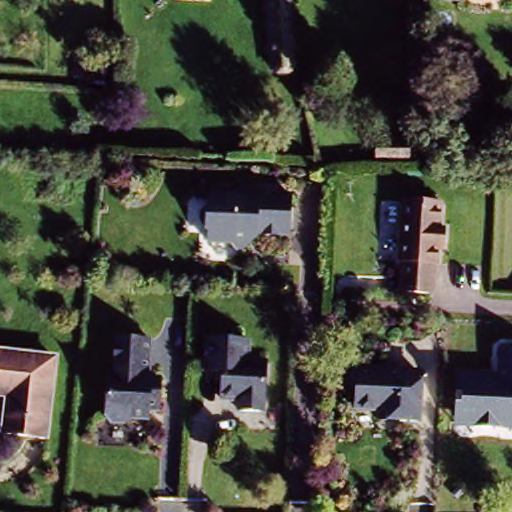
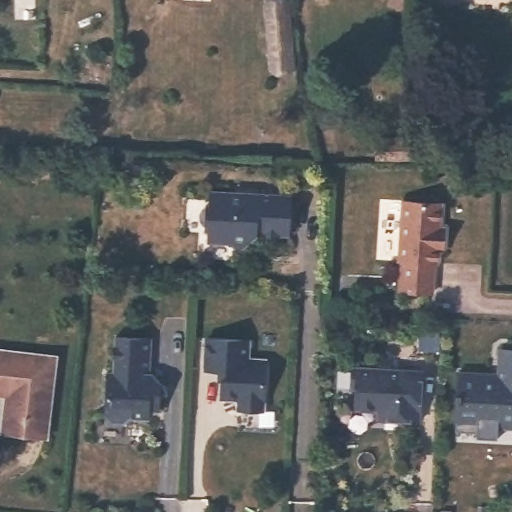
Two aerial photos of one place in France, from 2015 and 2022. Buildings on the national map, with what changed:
unchanged [(283,1),(287,64),(269,66),(265,2),(283,1)]
unchanged [(291,195),(289,235),(251,233),(251,242),(241,251),(233,242),(211,241),(211,228),(208,228),(209,202),(213,202),(213,192),(291,195)]
unchanged [(441,204),(439,227),(444,227),(443,250),(438,249),(437,265),(434,264),(433,294),(399,292),(401,262),(398,262),(402,201),(441,204)]
unchanged [(148,334),(146,369),(151,369),(158,379),(158,400),(147,400),(146,414),(128,413),(122,418),(108,417),(103,410),(105,367),(111,367),(113,331),(148,334)]
unchanged [(248,334),(246,353),(265,354),(262,405),(234,403),(236,394),(218,393),(220,373),(223,371),(223,364),(204,363),(206,331),(248,334)]
unchanged [(489,420),(481,419),(454,418),(454,411),(454,399),(453,399),(453,391),(456,390),(456,368),(488,370),(489,373),(495,373),(497,344),(512,345),(512,421),(489,420)]
unchanged [(41,435),(0,429),(0,418),(3,392),(0,392),(0,348),(51,355),(41,435)]
unchanged [(393,364),(398,368),(419,370),(417,415),(374,413),(375,405),(352,403),(353,384),(349,383),(351,361),(393,364)]

